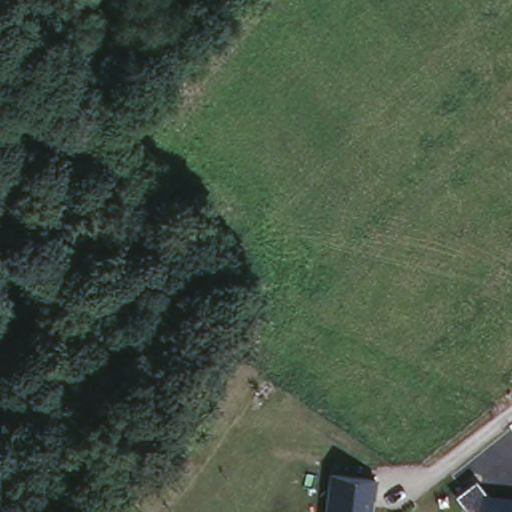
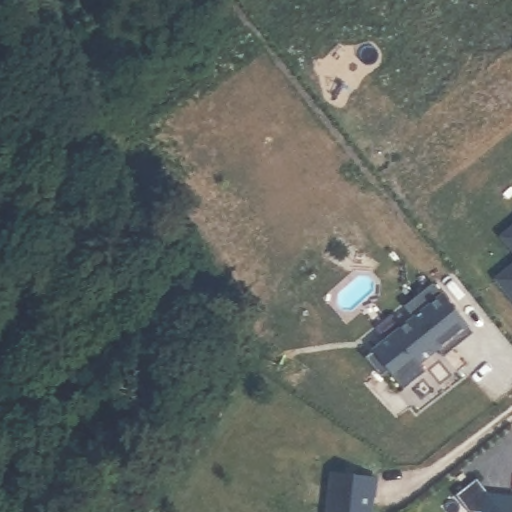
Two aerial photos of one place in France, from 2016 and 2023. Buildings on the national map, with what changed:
new [(501,237),(512,227),(512,251),(501,237)]
new [(498,283),(495,280),(512,266),(512,300),(498,283)]
new [(437,350),(419,364),(425,372),(404,390),(390,372),(382,379),(365,358),(413,318),(404,307),(432,284),(473,333),(450,352),(444,357),(440,353),(437,350)]
unchanged [(377,477),(373,512),(324,512),(329,472),(377,477)]
unchanged [(487,492),(512,494),(512,512),(480,512),(465,510),(455,495),(477,478),(487,492)]

